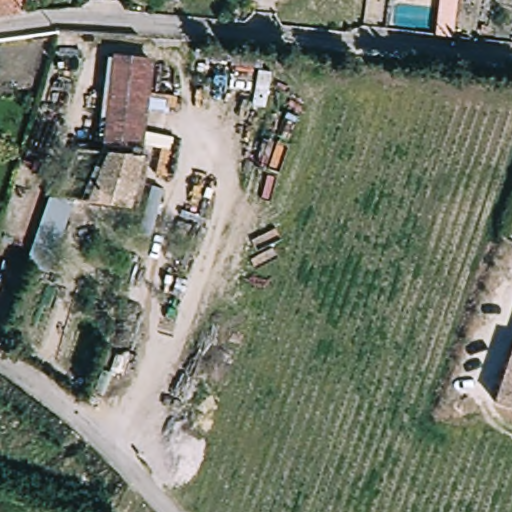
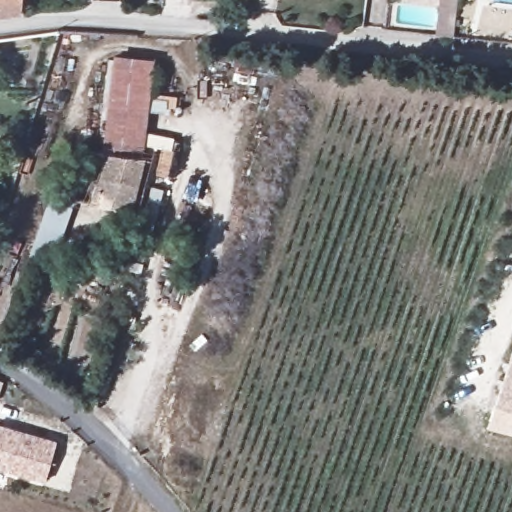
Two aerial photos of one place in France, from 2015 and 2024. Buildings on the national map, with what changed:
unchanged [(21,0),(20,11),(0,15),(0,0),(21,0)]
unchanged [(146,163),(155,164),(144,220),(79,208),(52,276),(31,267),(56,202),(72,204),(87,151),(108,155),(118,59),(156,63),(146,163)]
unchanged [(501,404),(512,371),(512,408),(501,404)]
new [(45,481),(0,470),(0,425),(58,441),(45,481)]

